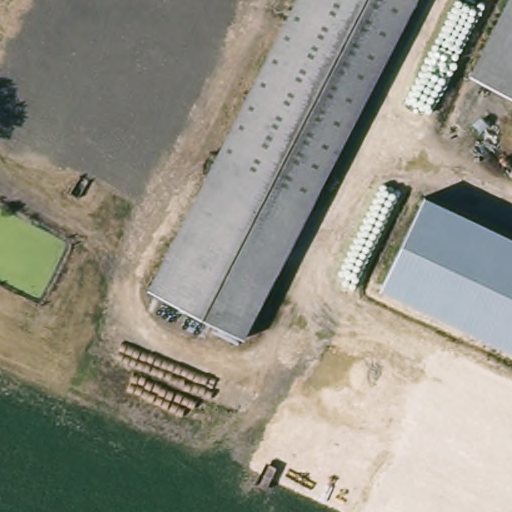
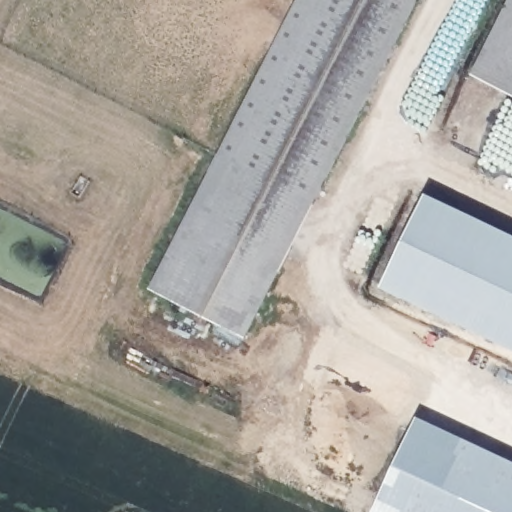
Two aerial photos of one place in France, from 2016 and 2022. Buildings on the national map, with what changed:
unchanged [(287,0),(403,0),(261,296),(255,310),(208,289),(163,268),(170,254),(287,0)]
unchanged [(468,78),(506,0),(512,0),(512,98),(468,78)]
unchanged [(512,244),(512,349),(382,287),(420,199),(512,244)]
unchanged [(237,345),(147,303),(163,268),(208,289),(255,310),(237,345)]
new [(371,512),(417,417),(512,462),(512,512),(371,512)]

